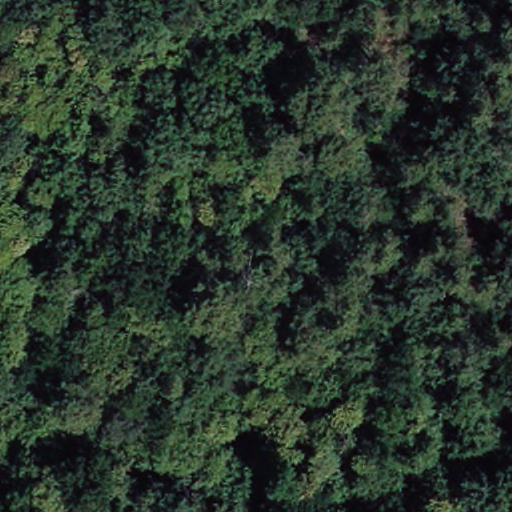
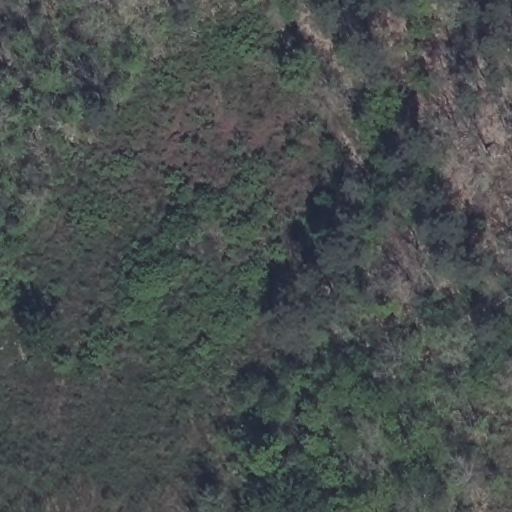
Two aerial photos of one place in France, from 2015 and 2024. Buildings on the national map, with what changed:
[]

